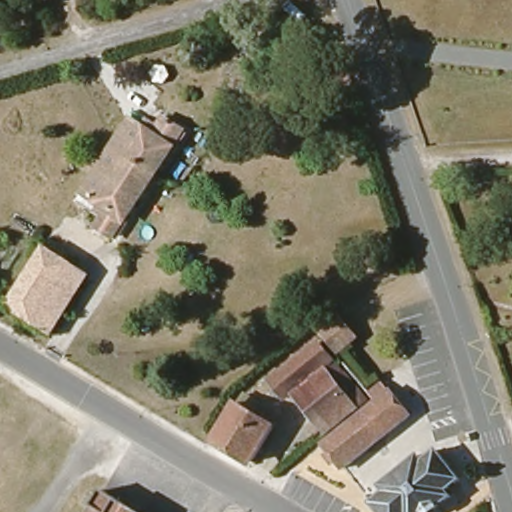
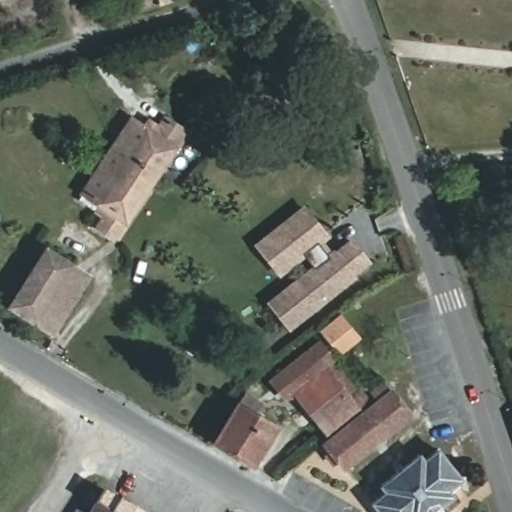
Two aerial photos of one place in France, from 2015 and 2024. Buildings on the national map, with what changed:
unchanged [(321,15),(306,7),(309,0),(316,0),(326,5),(321,15)]
unchanged [(154,125),(165,130),(172,120),(191,132),(178,152),(118,244),(100,234),(107,222),(83,208),(136,125),(148,132),(154,125)]
new [(320,245),(327,254),(333,249),(335,251),(352,238),(371,262),(355,275),(357,277),(289,332),(266,302),(313,265),(306,257),(280,278),(252,245),(304,204),(331,237),(320,245)]
unchanged [(36,327),(11,310),(46,252),(71,270),(36,327)]
unchanged [(36,327),(71,270),(89,282),(53,337),(36,327)]
unchanged [(339,321),(356,341),(339,355),(322,336),(339,321)]
unchanged [(281,380),(322,345),(363,392),(319,427),(281,380)]
unchanged [(345,472),(329,452),(384,405),(378,397),(389,388),(395,396),(412,418),(345,472)]
unchanged [(319,427),(363,392),(374,407),(331,442),(319,427)]
unchanged [(272,428),(249,464),(214,444),(238,408),(272,428)]
unchanged [(420,460),(426,466),(440,454),(463,482),(449,493),(454,501),(440,512),(375,512),(374,511),(389,498),(381,492),(420,460)]
unchanged [(98,511),(92,506),(104,490),(137,512),(97,512),(98,511)]

